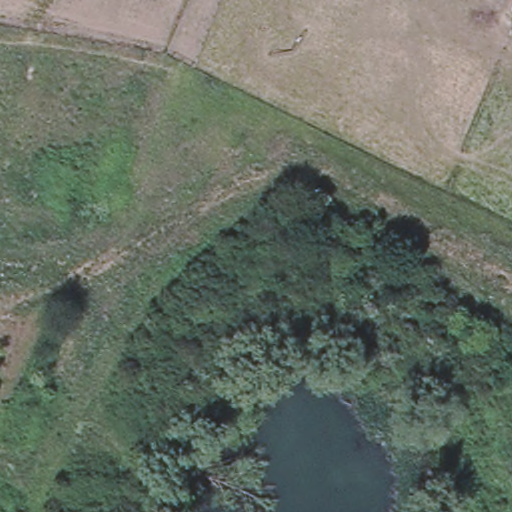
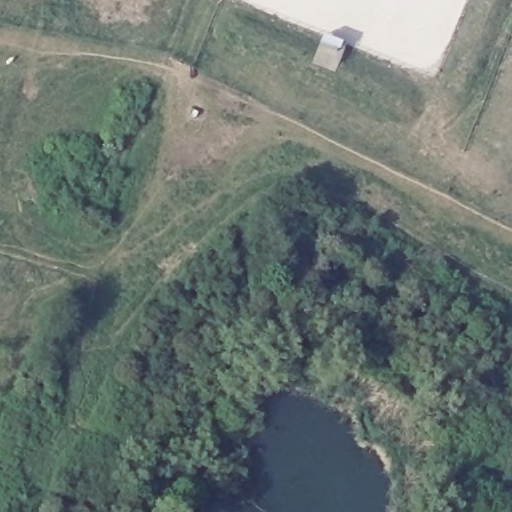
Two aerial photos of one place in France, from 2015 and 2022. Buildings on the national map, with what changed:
unchanged [(512,0),(512,11),(508,9),(512,0)]

